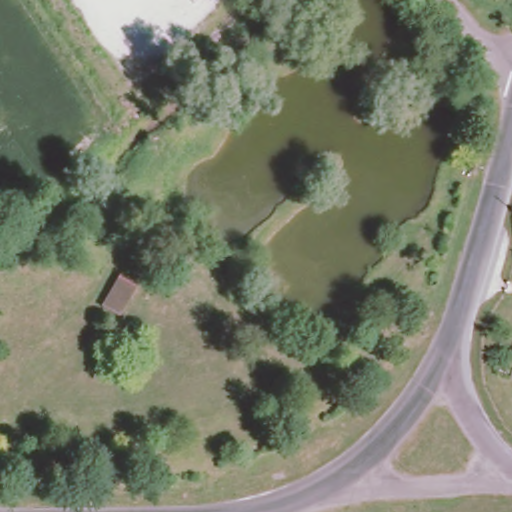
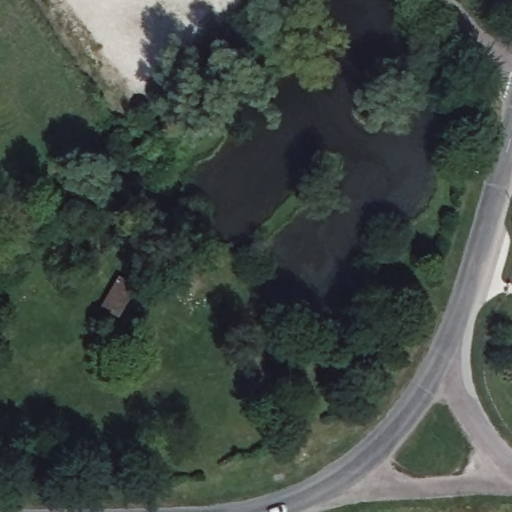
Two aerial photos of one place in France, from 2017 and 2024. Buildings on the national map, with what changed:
unchanged [(115,275),(132,282),(117,312),(100,307),(115,275)]

